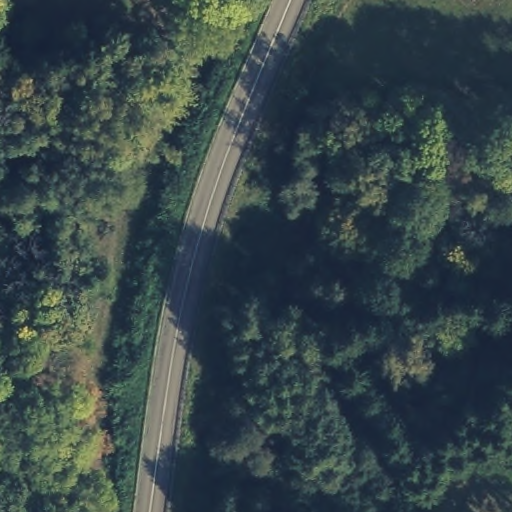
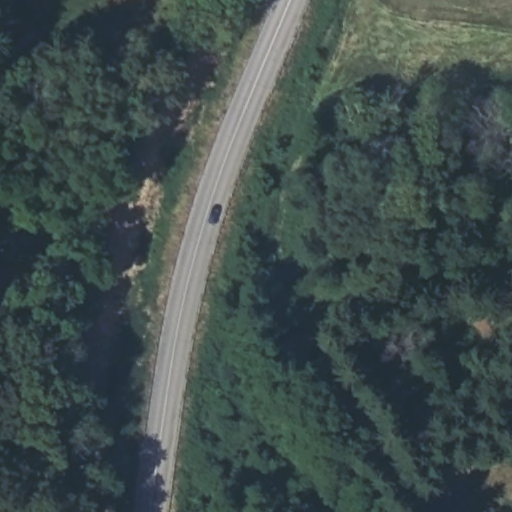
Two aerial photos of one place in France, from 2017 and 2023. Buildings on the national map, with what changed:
unchanged [(506,397),(512,390),(512,403),(506,397)]

